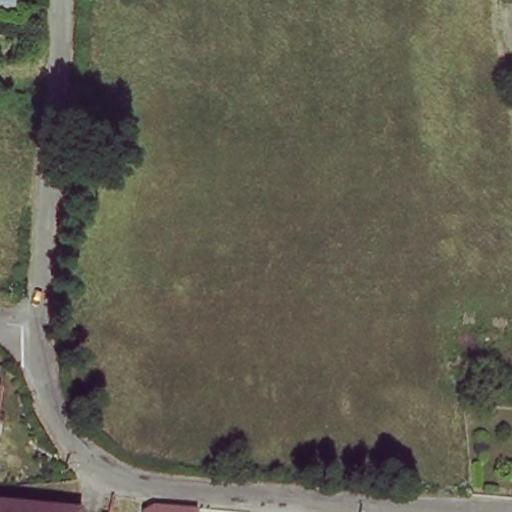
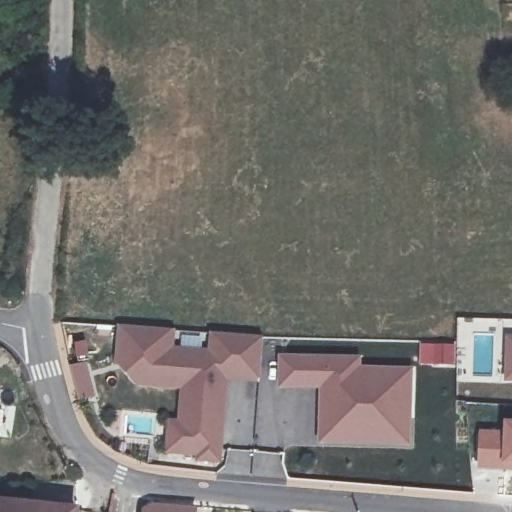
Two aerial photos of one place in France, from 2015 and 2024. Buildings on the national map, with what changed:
unchanged [(16,8),(0,9),(0,0),(16,0),(16,8)]
new [(262,379),(258,379),(257,383),(229,381),(222,462),(195,460),(196,455),(165,452),(168,418),(178,419),(181,389),(134,385),(115,362),(119,324),(177,329),(175,346),(209,349),(210,332),(264,336),(262,379)]
new [(418,341),(456,342),(455,365),(418,364),(418,341)]
new [(361,358),(361,370),(411,371),(409,451),(320,448),(320,391),(279,389),(279,357),(361,358)]
new [(82,364),(85,366),(92,396),(90,398),(78,402),(71,367),(82,364)]
new [(502,430),(503,420),(512,421),(512,472),(476,470),(478,429),(502,430)]
new [(150,498),(192,501),(191,512),(139,512),(140,511),(150,498)]
unchanged [(0,512),(0,507),(79,512),(0,512)]

